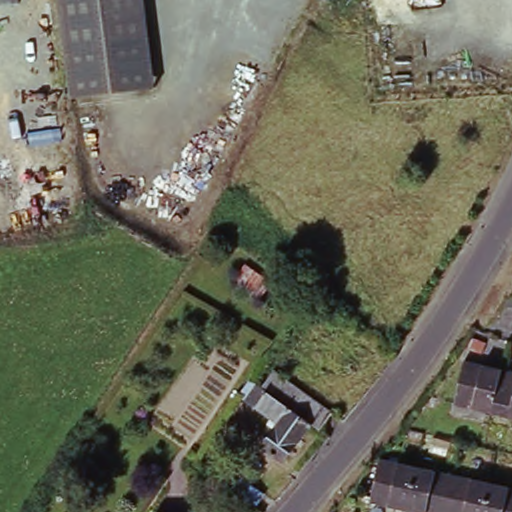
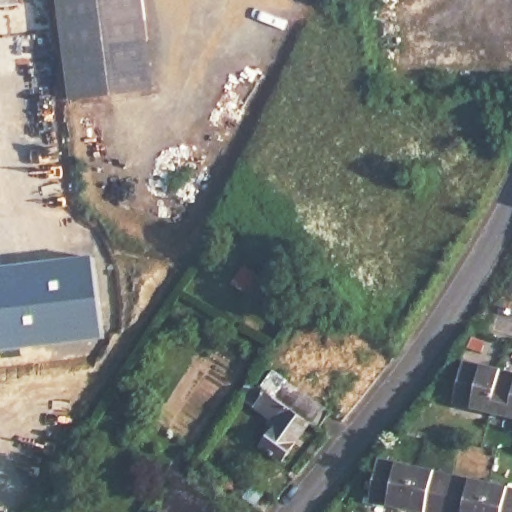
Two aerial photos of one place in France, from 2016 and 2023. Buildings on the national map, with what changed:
unchanged [(0,9),(0,0),(19,0),(19,7),(0,9)]
unchanged [(65,50),(60,0),(147,0),(151,41),(65,50)]
unchanged [(151,41),(156,90),(70,99),(65,50),(151,41)]
new [(93,257),(103,340),(0,351),(0,269),(93,257)]
unchanged [(259,301),(233,285),(246,265),(272,283),(259,301)]
unchanged [(246,350),(273,310),(267,306),(273,296),(280,301),(278,304),(291,312),(259,359),(246,350)]
unchanged [(481,412),(461,407),(472,366),(506,375),(481,412)]
unchanged [(273,371),(332,413),(320,430),(309,421),(261,387),(273,371)]
unchanged [(512,420),(481,412),(506,375),(512,376),(512,420)]
unchanged [(261,387),(309,421),(281,461),(260,447),(274,428),(268,424),(271,419),(238,395),(249,378),(261,387)]
unchanged [(438,508),(436,512),(408,512),(373,503),(383,461),(453,478),(438,508)]
unchanged [(512,512),(436,512),(438,508),(453,478),(512,493),(512,512)]
unchanged [(238,482),(260,497),(252,510),(229,495),(238,482)]

